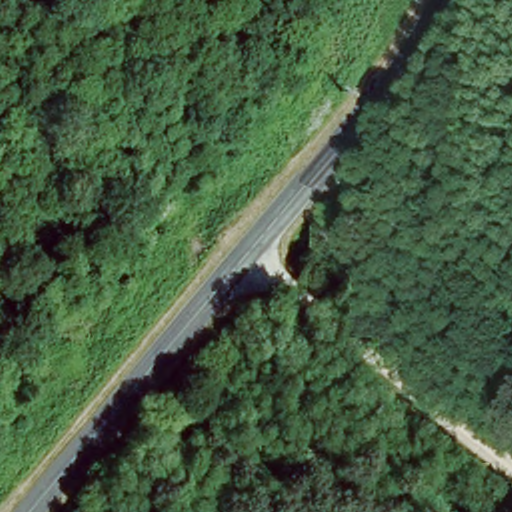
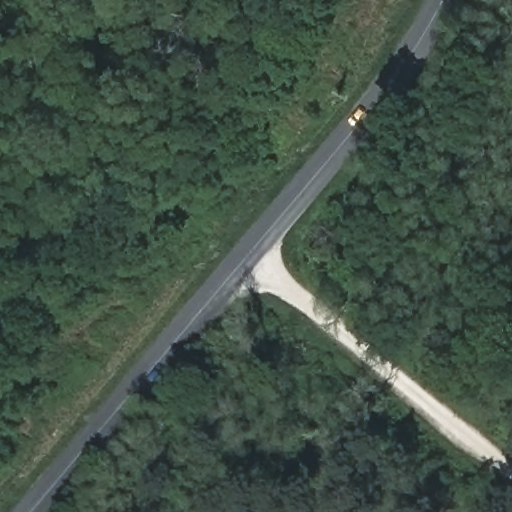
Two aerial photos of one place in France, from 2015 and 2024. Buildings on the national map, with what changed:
[]

